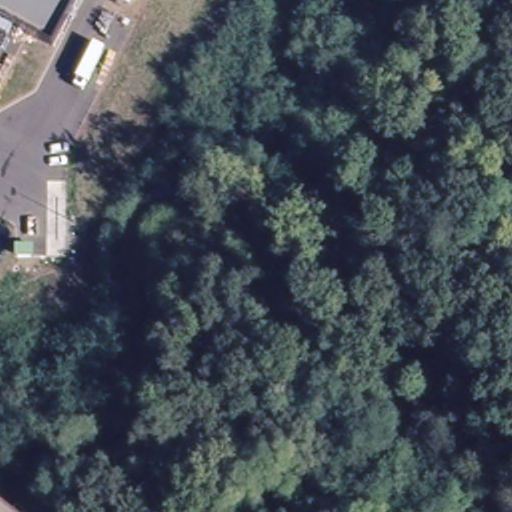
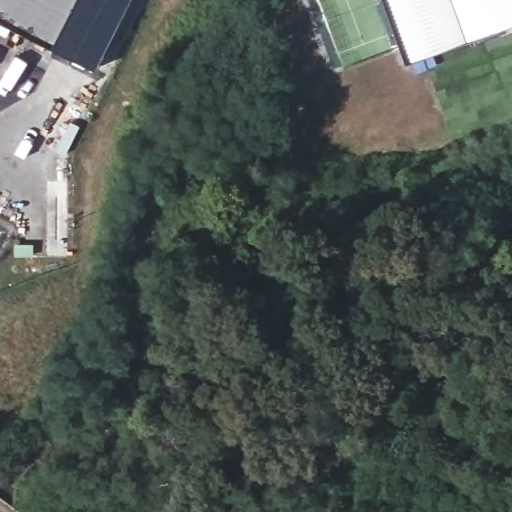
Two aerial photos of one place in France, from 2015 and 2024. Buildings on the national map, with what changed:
unchanged [(0,19),(0,0),(80,0),(55,47),(0,19)]
new [(133,0),(98,67),(55,47),(80,0),(133,0)]
new [(383,0),(512,0),(512,25),(407,64),(383,0)]

